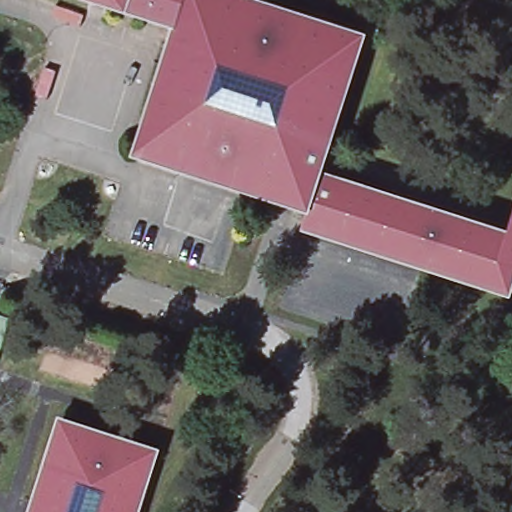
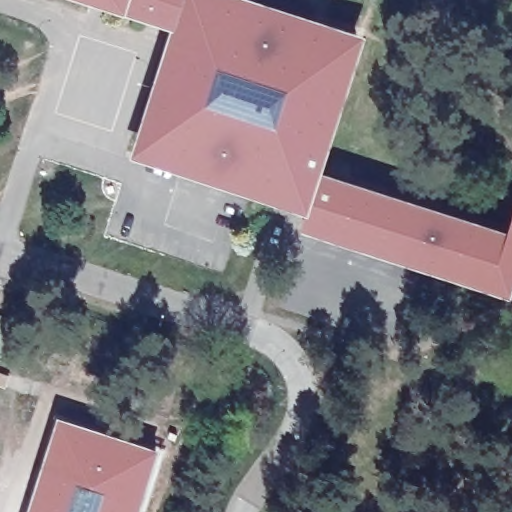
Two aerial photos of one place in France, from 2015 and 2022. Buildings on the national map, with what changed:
unchanged [(80,0),(127,0),(123,13),(80,0)]
unchanged [(172,29),(123,13),(127,0),(182,0),(172,29)]
unchanged [(182,0),(241,0),(354,35),(349,53),(354,55),(317,173),(305,214),(139,162),(147,138),(138,136),(172,29),(182,0)]
unchanged [(504,229),(510,209),(512,210),(512,266),(504,289),(301,229),(305,214),(317,173),(504,229)]
unchanged [(11,321),(0,356),(0,316),(11,321)]
unchanged [(81,445),(124,458),(130,444),(153,453),(133,512),(99,512),(108,487),(76,477),(64,512),(33,512),(63,422),(85,430),(81,445)]

